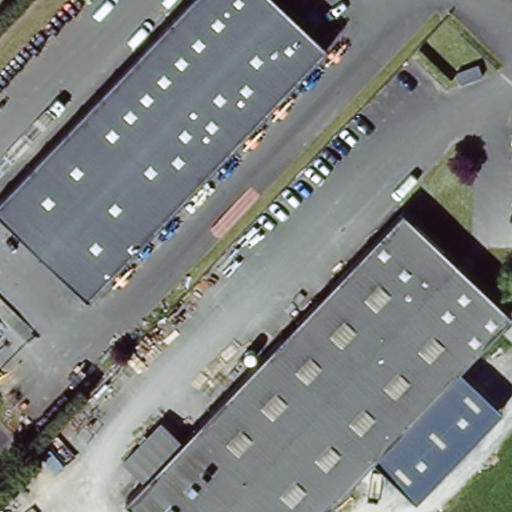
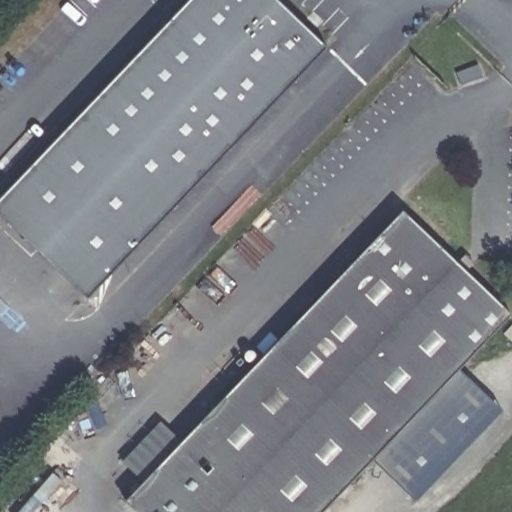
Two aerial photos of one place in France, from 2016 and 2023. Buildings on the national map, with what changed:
unchanged [(277,0),(327,48),(86,296),(0,214),(0,201),(191,0),(277,0)]
unchanged [(119,500),(137,481),(176,441),(400,208),(512,318),(512,321),(328,512),(131,512),(119,500)]
unchanged [(512,344),(510,346),(501,338),(512,326),(512,344)]
unchanged [(504,408),(415,501),(375,464),(462,374),(504,408)]
unchanged [(116,460),(155,420),(176,441),(137,481),(116,460)]

